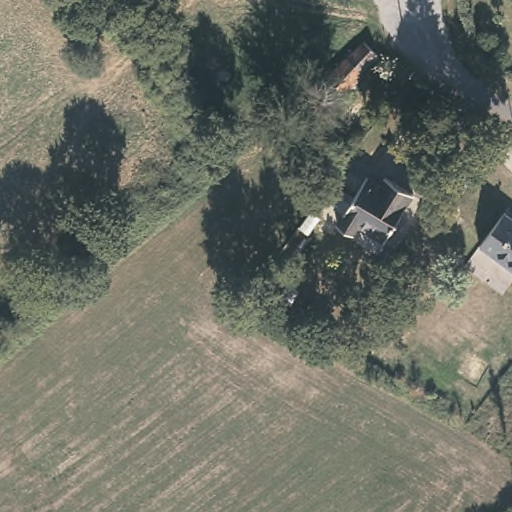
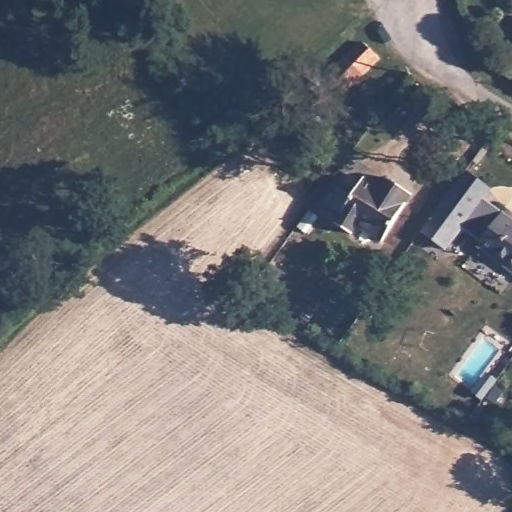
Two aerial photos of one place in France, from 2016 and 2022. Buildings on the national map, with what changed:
unchanged [(344,96),(327,79),(347,59),(362,43),(378,57),(362,73),(365,75),(344,96)]
new [(462,228),(447,249),(422,232),(467,171),(490,187),(482,197),(503,213),(482,242),(462,228)]
unchanged [(388,236),(364,221),(358,230),(342,220),(372,173),(385,181),(390,173),(417,191),(388,236)]
unchanged [(512,270),(479,246),(503,213),(512,219),(512,270)]

